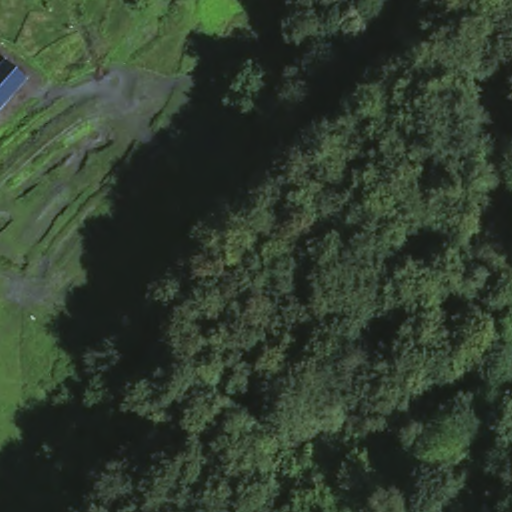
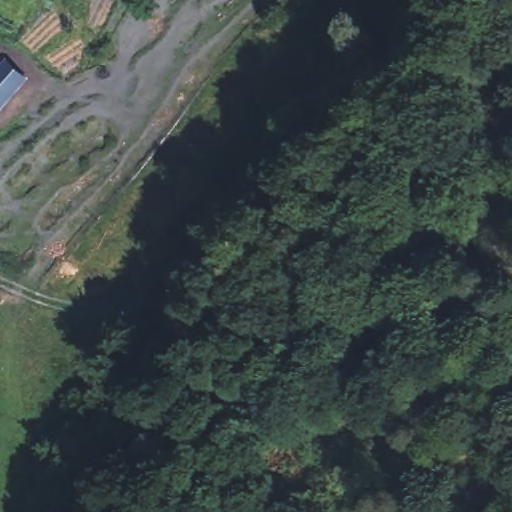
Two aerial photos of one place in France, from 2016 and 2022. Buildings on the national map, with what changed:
unchanged [(25,81),(0,110),(0,66),(2,63),(25,81)]

